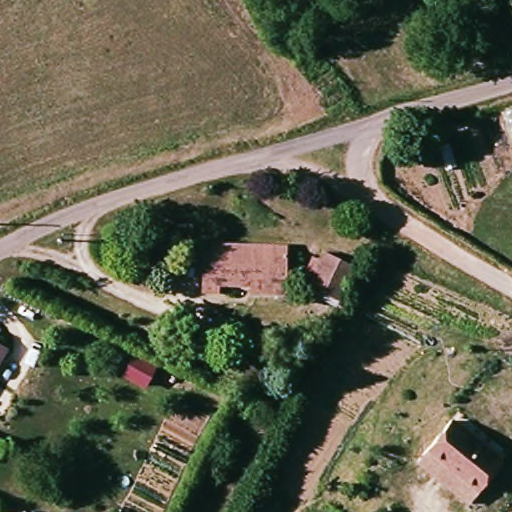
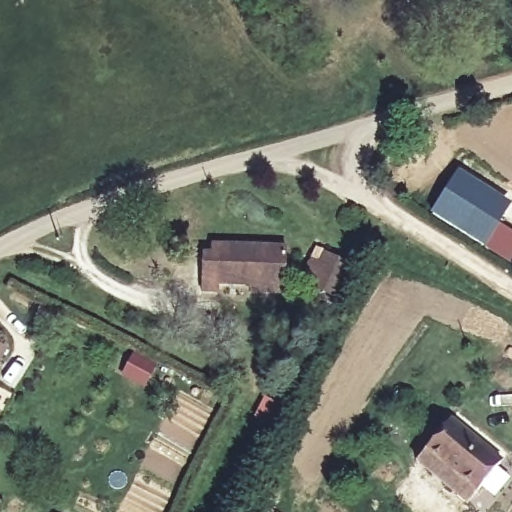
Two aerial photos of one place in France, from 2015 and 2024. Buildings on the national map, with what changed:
new [(510,264),(484,248),(429,214),(459,166),(512,199),(512,200),(501,222),(512,229),(512,261),(510,264)]
unchanged [(246,291),(246,282),(214,281),(213,297),(197,297),(198,256),(208,257),(208,246),(285,247),(284,282),(284,292),(246,291)]
unchanged [(356,267),(339,301),(308,284),(299,280),(306,263),(316,268),(324,251),(356,267)]
unchanged [(0,352),(0,347),(2,348),(0,352)]
unchanged [(424,452),(451,421),(503,465),(476,496),(469,505),(417,461),(424,452)]

